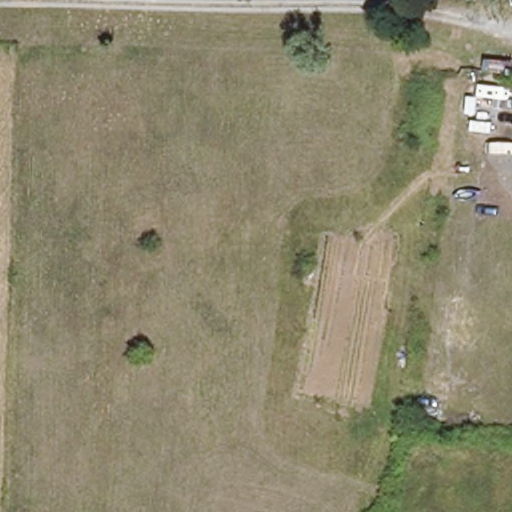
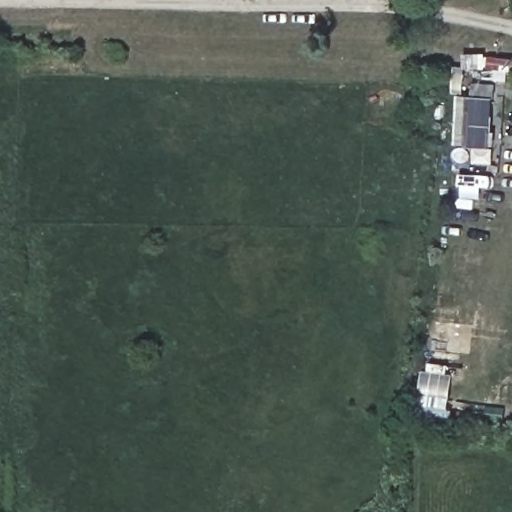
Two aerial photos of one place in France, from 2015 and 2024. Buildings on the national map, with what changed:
new [(471,83),(496,86),(487,152),(451,147),(458,95),(469,96),(471,83)]

